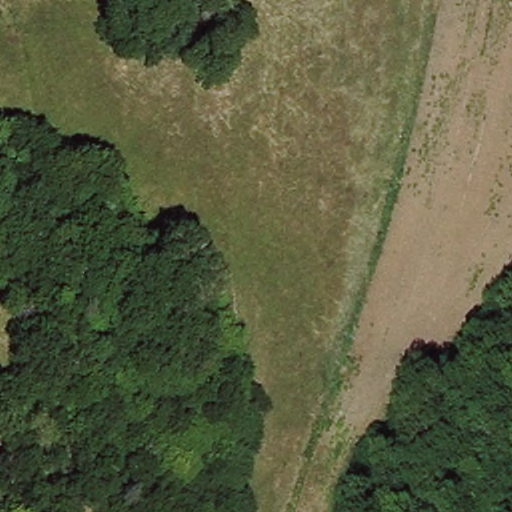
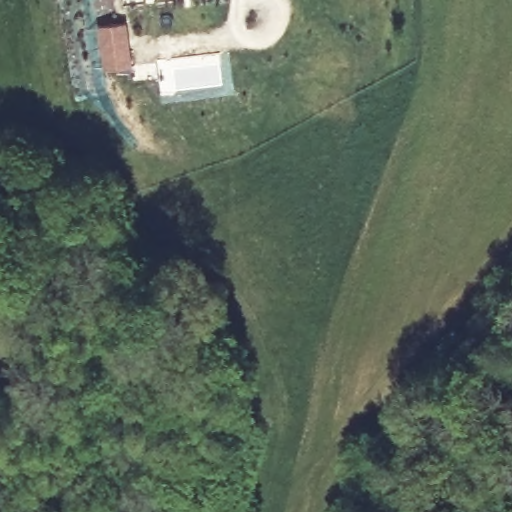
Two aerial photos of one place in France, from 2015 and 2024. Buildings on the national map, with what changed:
new [(97,27),(127,23),(133,66),(103,71),(97,27)]

